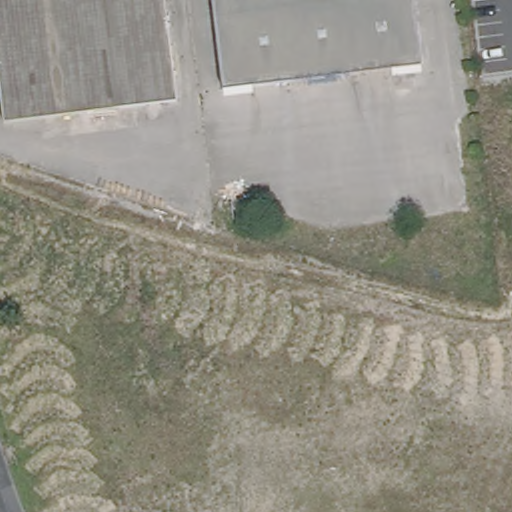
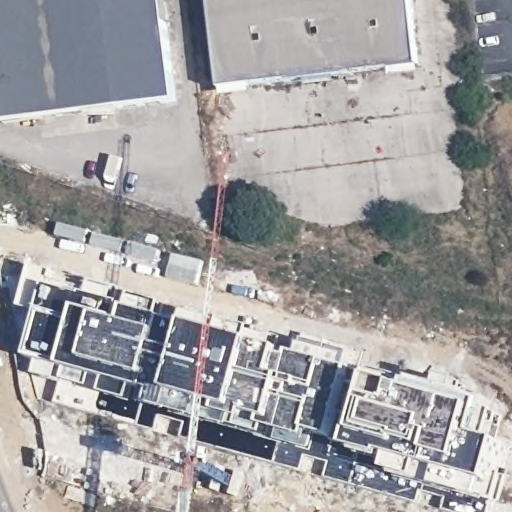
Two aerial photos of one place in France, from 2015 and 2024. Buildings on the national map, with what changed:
unchanged [(6,124),(0,83),(0,0),(166,0),(178,101),(6,124)]
unchanged [(421,66),(225,89),(214,0),(413,0),(421,66)]
new [(175,254),(206,262),(198,287),(169,278),(175,254)]
new [(53,277),(91,287),(92,281),(121,287),(116,302),(124,305),(123,310),(135,312),(137,302),(169,311),(167,322),(195,330),(195,320),(229,327),(228,329),(256,335),(256,338),(277,342),(277,351),(287,355),(286,361),(296,363),(297,358),(307,361),(310,347),(359,361),(356,375),(355,378),(382,388),(420,398),(421,387),(448,396),(449,385),(467,390),(465,397),(502,408),(499,418),(505,421),(501,446),(500,447),(510,451),(500,480),(512,482),(505,508),(497,507),(495,512),(446,512),(449,502),(425,496),(422,507),(328,482),(333,466),(308,460),(303,473),(184,443),(188,428),(164,421),(159,435),(58,408),(64,387),(58,384),(34,373),(36,360),(29,357),(37,328),(21,332),(9,277),(31,272),(33,266),(55,271),(53,277)]

